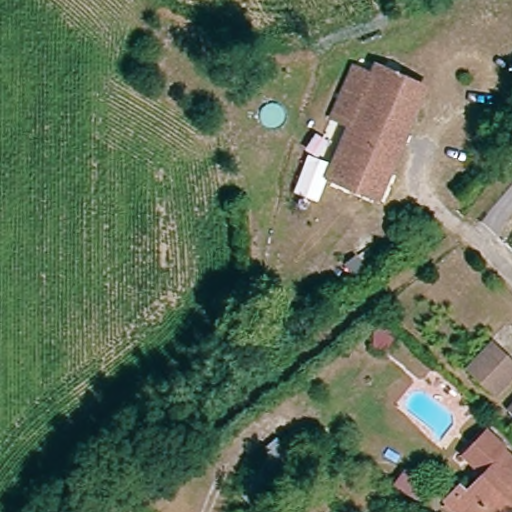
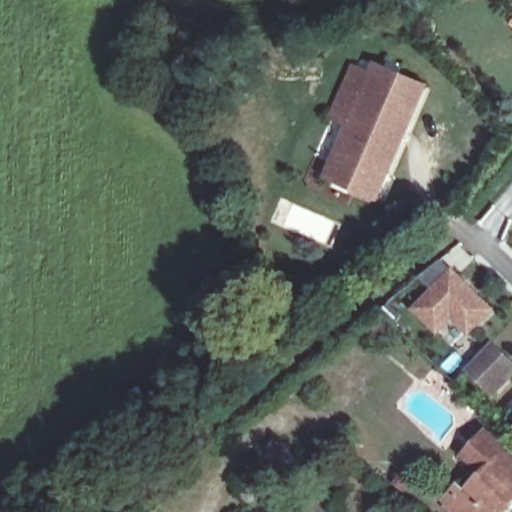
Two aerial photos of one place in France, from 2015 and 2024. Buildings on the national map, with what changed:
unchanged [(380,199),(328,177),(336,158),(318,150),(338,104),(353,68),(370,75),(375,65),(427,88),(408,134),(400,152),(380,199)]
new [(421,277),(442,261),(453,277),(486,320),(461,339),(447,321),(430,334),(411,309),(432,293),(421,277)]
unchanged [(491,344),(512,365),(512,373),(492,394),(466,368),(491,344)]
unchanged [(500,413),(512,401),(512,424),(500,413)]
unchanged [(507,512),(447,512),(440,512),(437,509),(454,490),(460,497),(477,479),(461,463),(482,439),(485,441),(487,439),(489,438),(496,443),(504,451),(502,453),(501,455),(512,466),(512,507),(507,512)]
unchanged [(430,486),(420,496),(399,477),(409,466),(430,486)]

